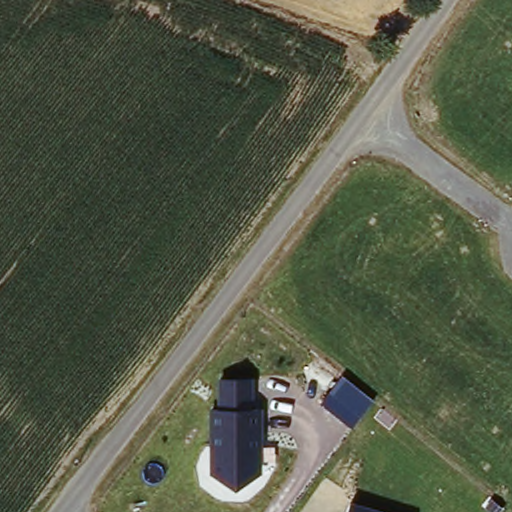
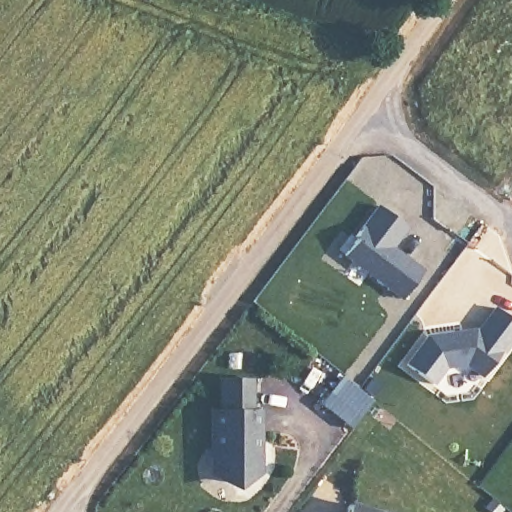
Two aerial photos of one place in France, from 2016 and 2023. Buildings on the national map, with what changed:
new [(425,272),(404,299),(347,256),(359,239),(357,237),(380,206),(408,228),(394,248),(409,259),(425,272)]
new [(456,334),(464,332),(477,330),(480,332),(497,308),(512,319),(512,343),(505,352),(504,352),(485,377),(469,365),(448,367),(435,385),(409,365),(430,337),(456,334)]
new [(344,377),(375,402),(353,430),(322,405),(344,377)]
unchanged [(249,409),(260,409),(258,471),(244,481),(228,480),(213,469),(214,410),(220,410),(220,379),(250,380),(249,409)]
new [(505,508),(501,512),(496,512),(489,507),(495,500),(505,508)]
unchanged [(383,512),(348,512),(352,502),(383,512)]

